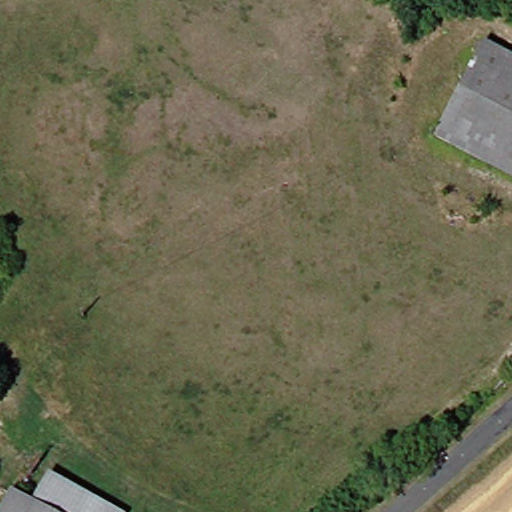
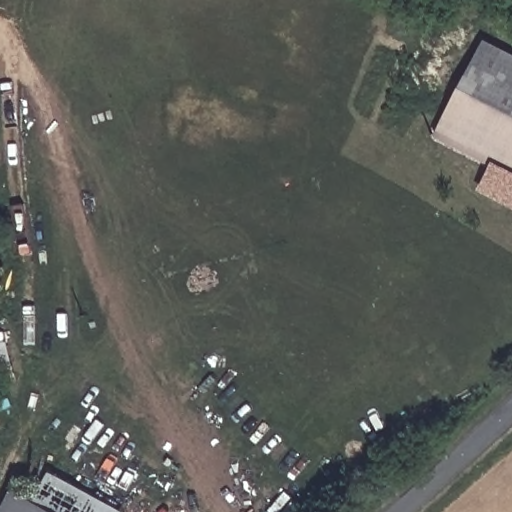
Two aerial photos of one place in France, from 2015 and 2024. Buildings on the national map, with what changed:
unchanged [(512,173),(508,179),(425,138),(477,43),(512,63),(512,173)]
new [(487,169),(508,179),(512,173),(512,206),(477,189),(487,169)]
unchanged [(40,475),(110,512),(41,512),(25,504),(31,491),(40,475)]
unchanged [(0,512),(0,503),(5,493),(25,504),(41,512),(0,512)]

